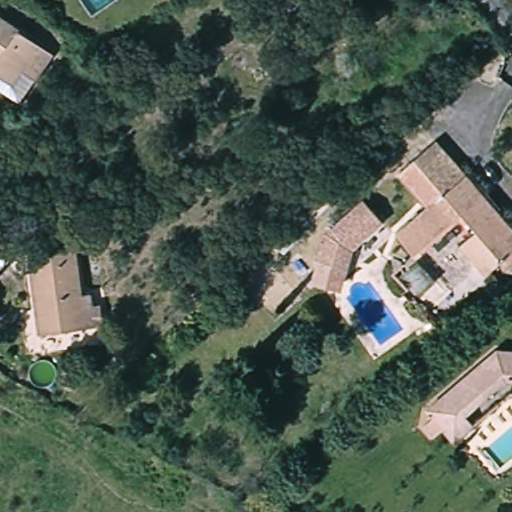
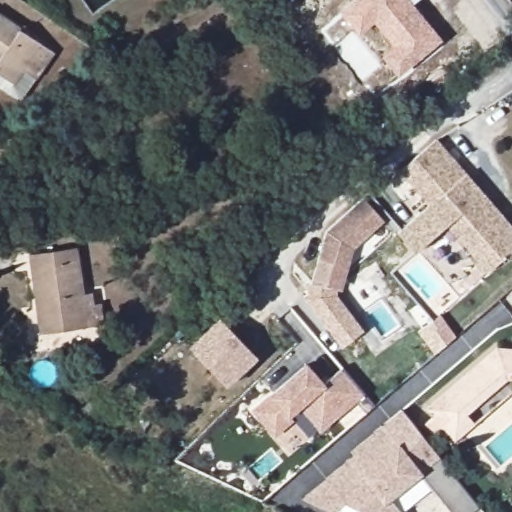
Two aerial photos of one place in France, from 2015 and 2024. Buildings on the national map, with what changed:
new [(443,40),(397,77),(380,55),(392,45),(373,22),(360,34),(340,11),(354,0),(418,0),(413,4),(443,40)]
unchanged [(38,80),(26,73),(17,86),(0,73),(0,17),(55,56),(38,80)]
unchanged [(407,170),(440,144),(512,227),(512,257),(505,262),(465,213),(417,251),(402,232),(435,204),(407,170)]
unchanged [(356,250),(350,270),(318,263),(327,233),(365,196),(386,222),(356,250)]
unchanged [(45,332),(40,255),(84,251),(88,328),(45,332)]
new [(350,270),(343,291),(338,290),(337,296),(363,330),(341,348),(302,297),(308,293),(304,288),(312,283),(318,263),(350,270)]
new [(222,318),(259,356),(230,385),(192,346),(222,318)]
unchanged [(456,445),(445,430),(436,439),(423,423),(425,404),(497,345),(512,347),(512,393),(456,445)]
new [(300,408),(290,417),(293,421),(274,438),(251,410),(267,396),(307,362),(324,383),(343,368),(365,395),(320,432),(300,408)]
new [(485,512),(450,512),(420,476),(391,500),(402,512),(363,512),(345,503),(334,512),(331,512),(303,498),(355,455),(351,451),(382,426),(402,410),(485,512)]

